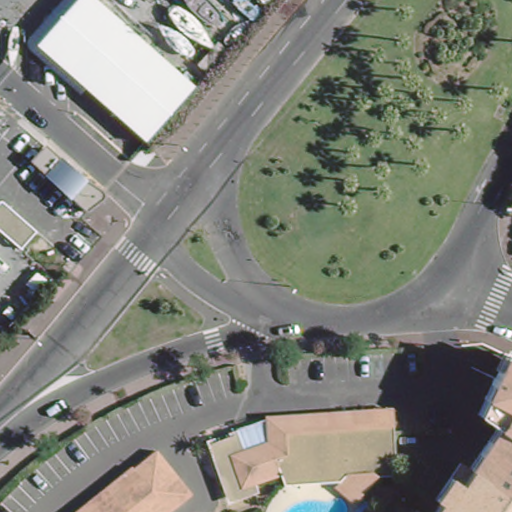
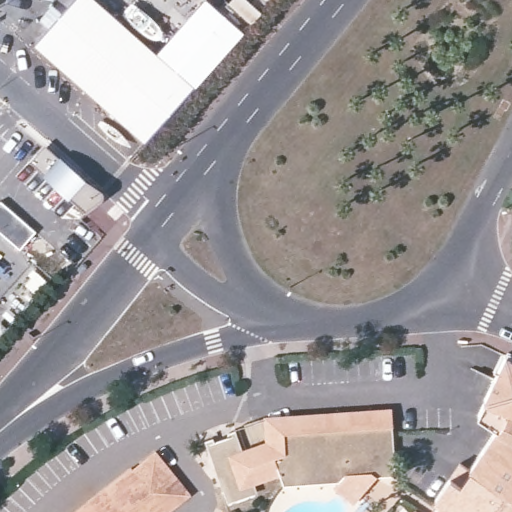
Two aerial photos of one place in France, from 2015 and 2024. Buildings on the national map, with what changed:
unchanged [(76,0),(88,0),(87,1),(42,52),(93,97),(87,104),(36,58),(34,54),(34,50),(35,45),(76,0)]
unchanged [(96,0),(203,95),(199,100),(153,152),(93,97),(42,52),(87,1),(88,0),(96,0)]
new [(208,0),(245,32),(195,88),(156,53),(204,0),(208,0)]
new [(89,214),(72,197),(71,200),(42,175),(45,173),(31,160),(45,144),(107,194),(89,214)]
demolished [(89,205),(78,195),(88,184),(99,193),(89,205)]
unchanged [(0,227),(0,203),(32,229),(19,243),(0,227)]
unchanged [(495,376),(507,351),(512,354),(512,385),(495,376)]
unchanged [(435,501),(430,498),(448,474),(456,463),(465,468),(466,469),(494,428),(476,416),(484,401),(483,400),(495,376),(512,385),(512,512),(428,512),(435,501)]
unchanged [(280,429),(280,448),(245,462),(239,448),(262,439),(261,414),(278,413),(279,413),(386,406),(387,421),(280,429)]
unchanged [(222,487),(223,486),(203,439),(232,429),(239,448),(244,461),(245,462),(280,448),(280,429),(387,421),(391,473),(374,475),(350,501),(329,484),(332,479),(281,482),(276,473),(252,482),(253,488),(239,493),(226,498),(222,487)]
unchanged [(130,466),(132,468),(155,450),(190,493),(166,512),(73,512),(130,466)]

